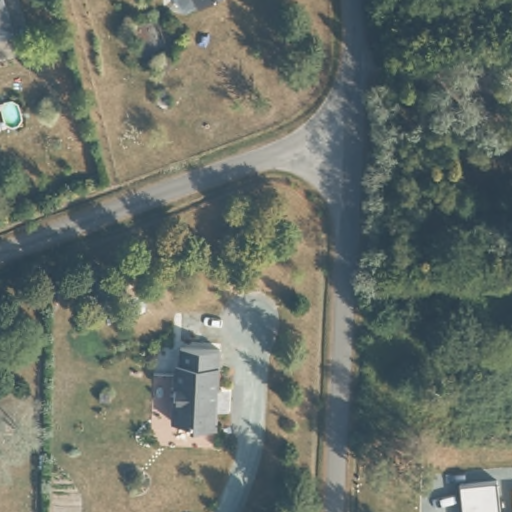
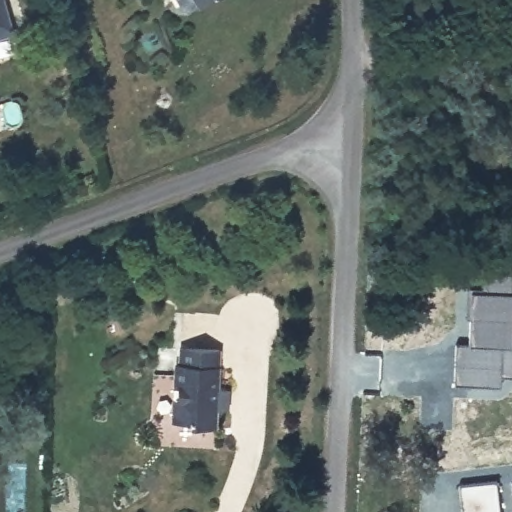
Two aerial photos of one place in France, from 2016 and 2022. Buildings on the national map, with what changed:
unchanged [(17,30),(0,35),(0,0),(9,0),(17,30)]
unchanged [(202,3),(196,4),(189,0),(204,0),(202,3)]
new [(468,344),(470,291),(484,291),(486,270),(512,271),(512,312),(510,345),(512,346),(512,377),(497,376),(496,387),(453,384),(455,344),(468,344)]
unchanged [(222,344),(220,382),(225,383),(223,404),(218,404),(217,424),(196,424),(194,417),(171,417),(175,371),(180,372),(184,342),(222,344)]
unchanged [(499,512),(462,512),(458,486),(494,482),(499,512)]

